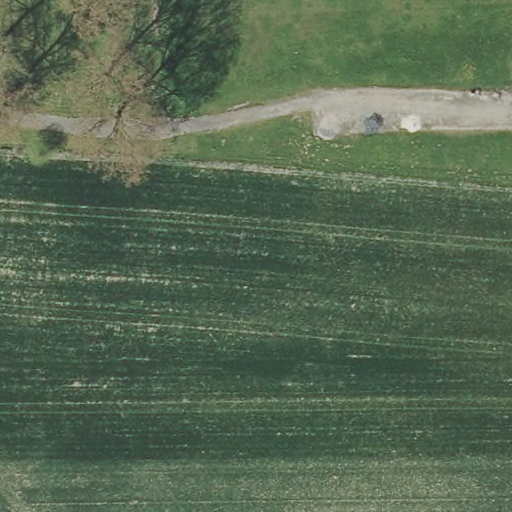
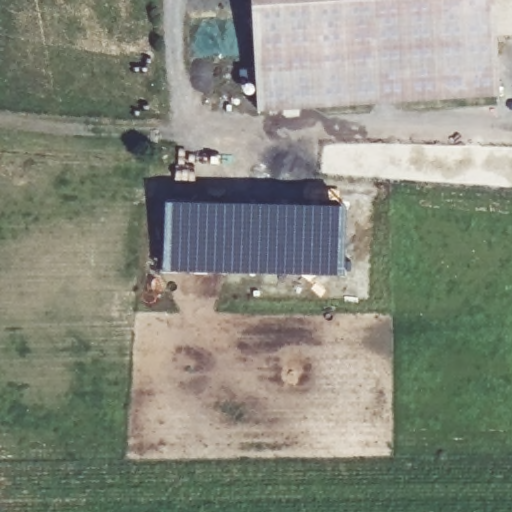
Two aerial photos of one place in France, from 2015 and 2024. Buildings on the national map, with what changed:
new [(494,97),(253,111),(247,0),(489,0),(494,97)]
new [(345,202),(343,272),(165,269),(167,198),(345,202)]

